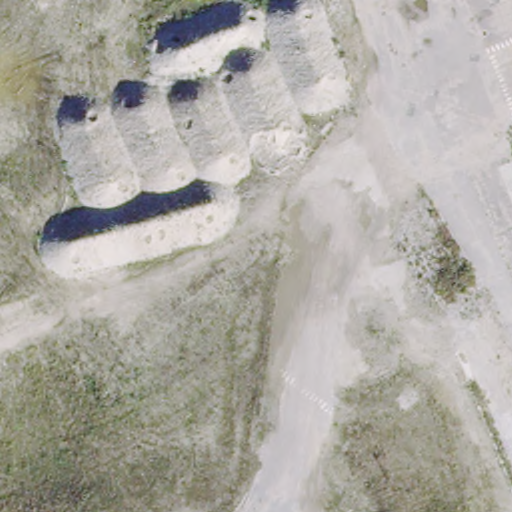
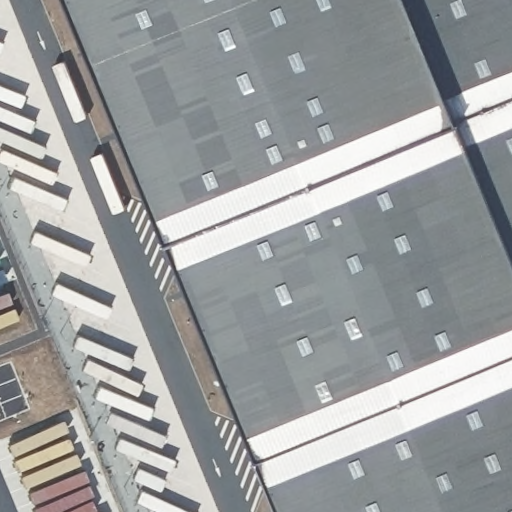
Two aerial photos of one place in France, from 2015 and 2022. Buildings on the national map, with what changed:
new [(170,234),(76,0),(512,0),(512,512),(285,512),(170,234)]

